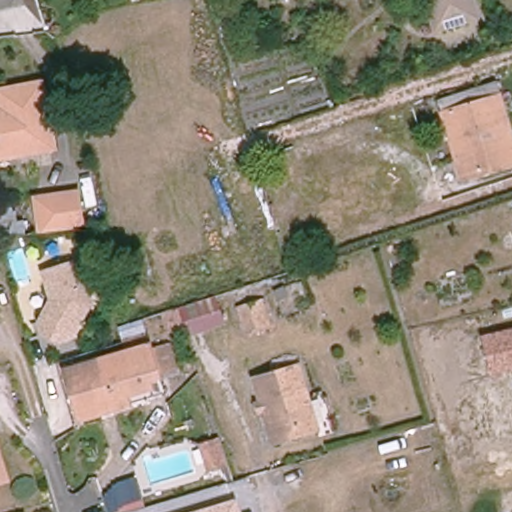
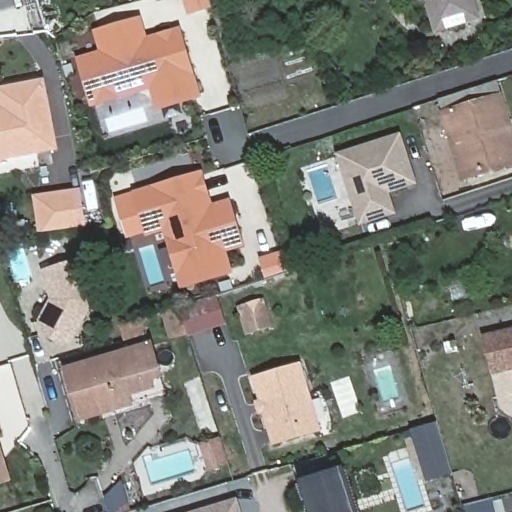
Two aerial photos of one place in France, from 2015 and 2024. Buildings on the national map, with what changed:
unchanged [(421,0),(427,0),(421,2),(421,0)]
unchanged [(440,30),(431,0),(478,0),(482,17),(440,30)]
new [(150,90),(90,107),(76,59),(99,51),(92,30),(140,16),(146,37),(181,29),(202,98),(156,112),(150,90)]
unchanged [(60,148),(0,159),(0,108),(6,107),(4,90),(47,82),(60,148)]
unchanged [(512,165),(462,180),(442,112),(500,95),(510,129),(503,131),(512,159),(512,165)]
new [(396,215),(360,227),(336,153),(401,132),(418,185),(390,193),(396,215)]
new [(115,197),(132,192),(132,191),(203,170),(213,203),(231,199),(245,247),(228,252),(234,273),(180,290),(164,233),(146,237),(145,233),(126,239),(115,197)]
unchanged [(81,210),(84,225),(56,229),(42,231),(40,232),(35,197),(79,191),(81,210)]
unchanged [(25,218),(28,237),(0,240),(0,206),(15,205),(17,221),(25,218)]
unchanged [(64,345),(60,342),(58,342),(49,336),(45,323),(51,312),(56,302),(48,272),(84,262),(96,307),(78,337),(76,341),(64,345)]
unchanged [(226,326),(190,337),(186,326),(165,332),(159,312),(219,295),(226,326)]
unchanged [(270,326),(246,333),(239,307),(262,300),(270,326)]
unchanged [(146,332),(124,339),(119,327),(142,319),(146,332)]
unchanged [(482,335),(512,328),(512,371),(491,377),(482,335)]
unchanged [(104,412),(80,420),(66,369),(150,344),(160,376),(150,379),(152,387),(127,395),(130,405),(104,412)]
unchanged [(318,430),(273,443),(255,378),(299,366),(318,430)]
new [(411,430),(437,422),(452,475),(425,482),(411,430)]
unchanged [(229,464),(209,471),(200,444),(220,438),(229,464)]
new [(348,473),(360,512),(318,512),(310,485),(348,473)]
unchanged [(142,496),(122,501),(119,485),(138,480),(142,496)]
unchanged [(237,498),(242,512),(190,512),(237,498)]

